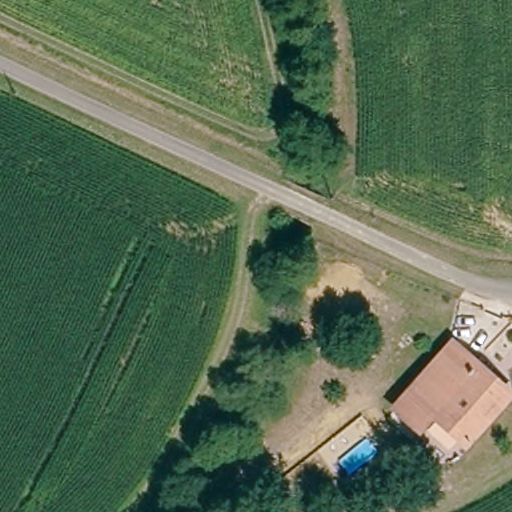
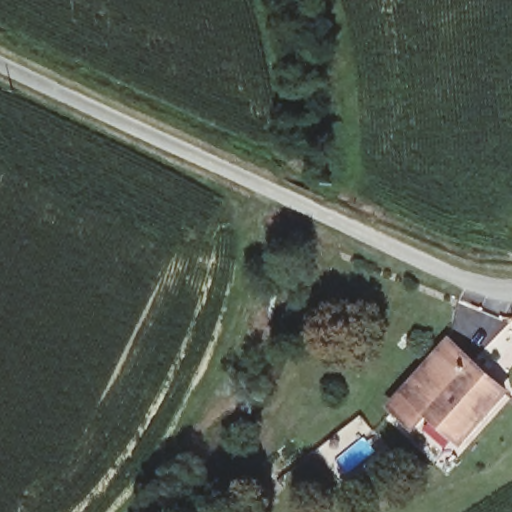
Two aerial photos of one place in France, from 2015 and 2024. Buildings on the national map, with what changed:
unchanged [(512,393),(465,441),(435,415),(422,425),(392,395),(386,390),(452,327),(462,337),(512,385),(512,393)]

